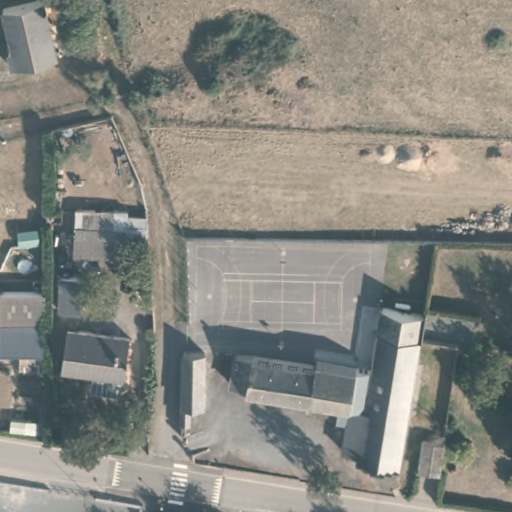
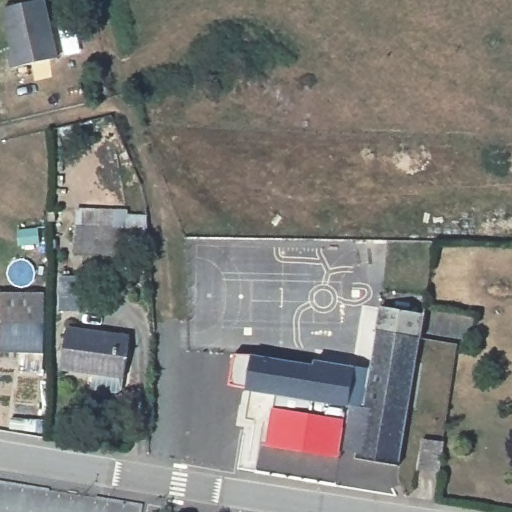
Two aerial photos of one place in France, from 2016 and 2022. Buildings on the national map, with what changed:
unchanged [(57,62),(11,71),(8,54),(13,52),(4,12),(45,4),(57,62)]
unchanged [(124,249),(124,256),(75,253),(76,210),(127,211),(127,215),(147,217),(150,250),(124,249)]
unchanged [(60,277),(81,277),(81,312),(60,311),(60,277)]
unchanged [(0,352),(0,328),(1,292),(45,293),(44,353),(0,352)]
unchanged [(357,459),(357,453),(343,450),(346,428),(345,428),(344,428),(347,412),(337,410),(338,403),(323,400),(247,389),(248,385),(231,382),(236,354),(251,354),(316,364),(316,360),(356,366),(371,369),(382,305),(424,313),(419,338),(399,466),(357,459)]
unchanged [(130,337),(124,378),(61,369),(66,329),(130,337)]
new [(323,400),(338,403),(337,410),(347,412),(344,428),(345,428),(346,428),(343,450),(341,458),(267,445),(274,393),(323,400)]
unchanged [(423,439),(442,442),(438,473),(419,470),(423,439)]

